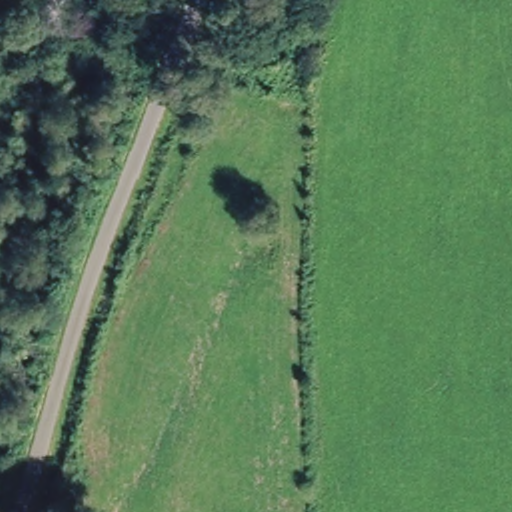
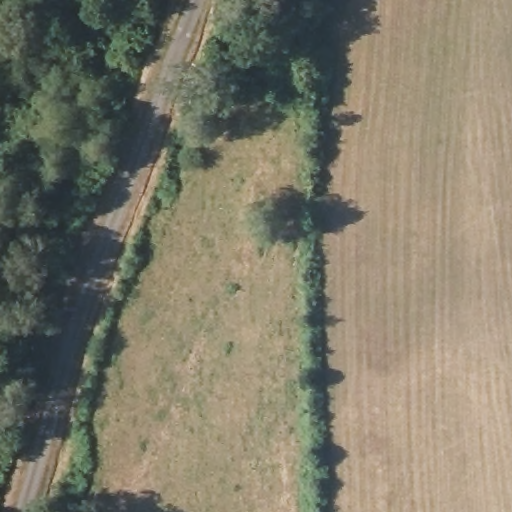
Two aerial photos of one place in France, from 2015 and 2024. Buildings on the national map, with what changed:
[]

